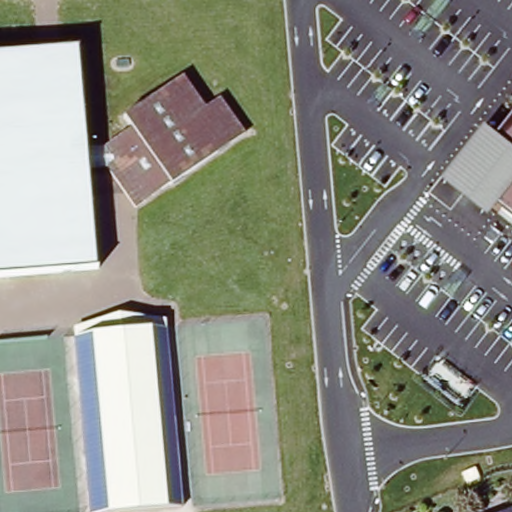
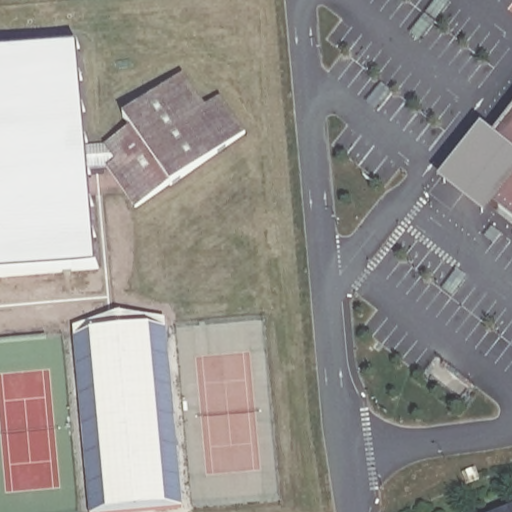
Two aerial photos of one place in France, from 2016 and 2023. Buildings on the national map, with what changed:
unchanged [(83,152),(85,172),(95,273),(0,282),(0,59),(73,52),(83,152)]
unchanged [(101,150),(124,132),(117,121),(120,119),(177,80),(198,114),(215,102),(239,140),(165,188),(165,187),(130,209),(104,170),(85,172),(83,152),(101,150)]
unchanged [(495,138),(512,115),(512,221),(494,207),(485,218),(438,181),(480,127),(495,138)]
unchanged [(117,312),(165,320),(178,507),(137,512),(90,512),(72,328),(117,312)]
unchanged [(512,510),(512,512),(508,512),(512,510)]

